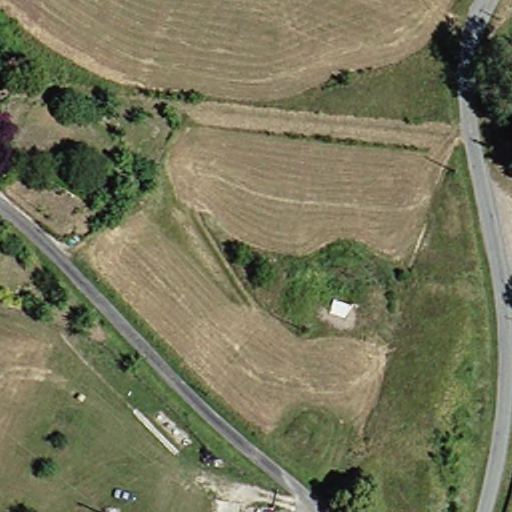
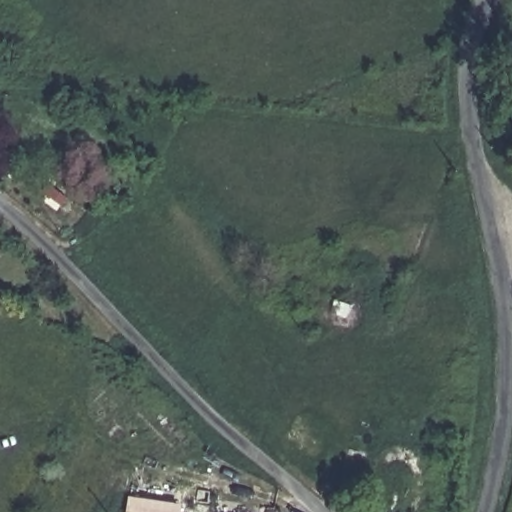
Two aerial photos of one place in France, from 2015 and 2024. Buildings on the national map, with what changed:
new [(129,495),(182,503),(181,512),(126,512),(129,495)]

